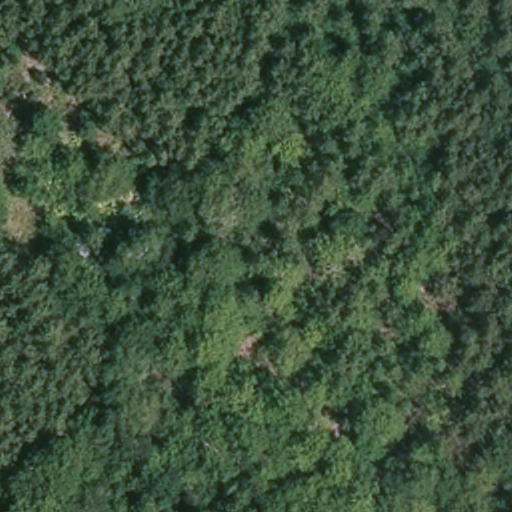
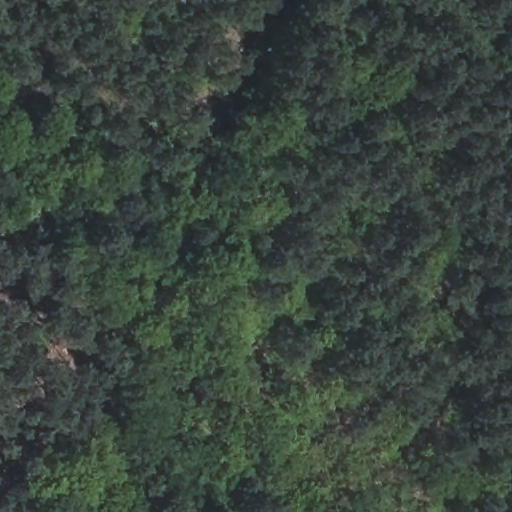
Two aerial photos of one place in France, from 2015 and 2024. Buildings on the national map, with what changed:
unchanged [(92,267),(72,251),(81,237),(101,256),(92,267)]

